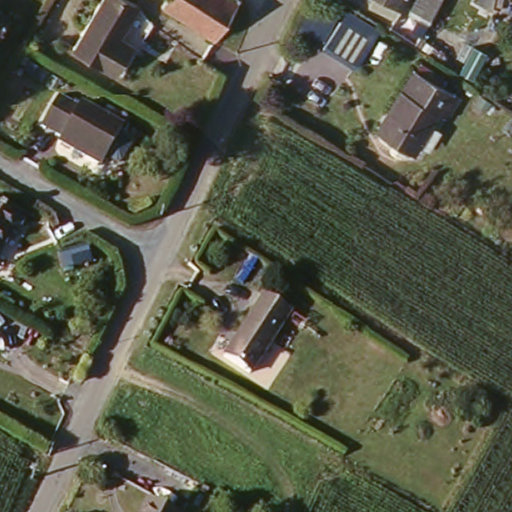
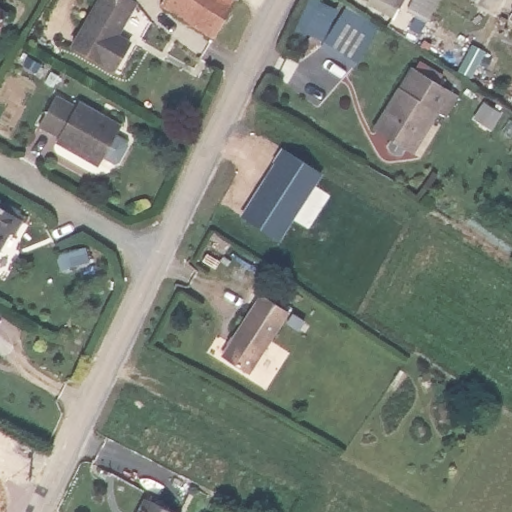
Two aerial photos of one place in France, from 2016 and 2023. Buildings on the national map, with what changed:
unchanged [(150,10),(131,42),(146,51),(129,79),(72,47),(99,0),(133,0),(150,10)]
unchanged [(157,1),(158,0),(233,0),(212,36),(157,1)]
unchanged [(425,11),(407,2),(409,0),(430,0),(425,11)]
unchanged [(0,21),(0,6),(7,10),(0,21)]
unchanged [(372,39),(357,61),(333,47),(348,24),(372,39)]
unchanged [(455,92),(440,116),(432,110),(405,152),(400,149),(396,152),(390,155),(381,149),(381,145),(385,139),(370,130),(413,65),(455,92)]
unchanged [(104,162),(60,138),(63,133),(43,122),(58,95),(79,107),(81,103),(125,127),(104,162)]
new [(285,152),(320,175),(278,240),(244,218),(285,152)]
unchanged [(12,235),(7,232),(0,244),(0,208),(22,221),(12,235)]
unchanged [(260,291),(287,302),(254,373),(226,361),(260,291)]
unchanged [(181,511),(180,512),(136,512),(146,493),(181,511)]

